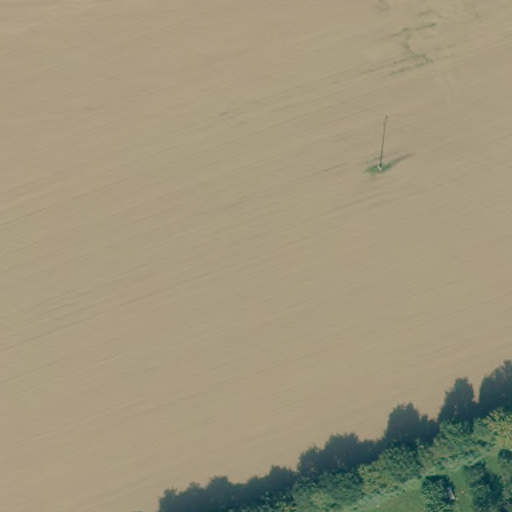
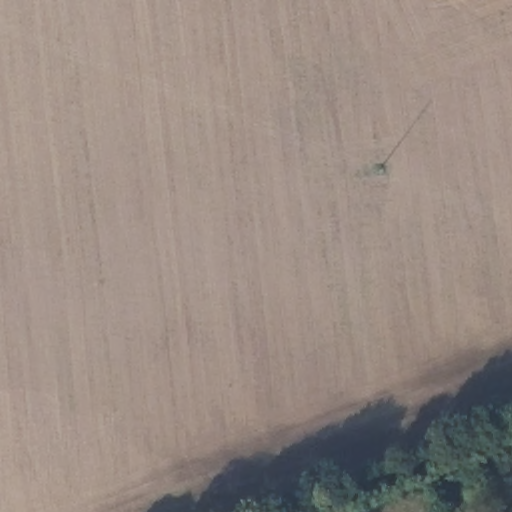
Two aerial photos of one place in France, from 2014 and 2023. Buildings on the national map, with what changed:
[]

